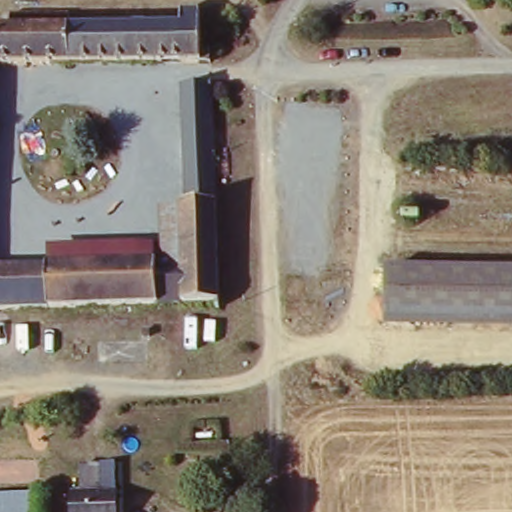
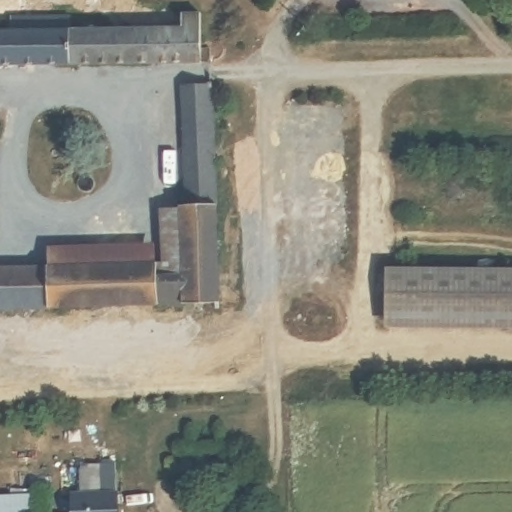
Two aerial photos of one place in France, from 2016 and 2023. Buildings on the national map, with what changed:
unchanged [(203,28),(202,66),(0,70),(0,29),(203,28)]
unchanged [(48,266),(48,247),(163,246),(161,211),(189,208),(186,85),(215,84),(226,211),(243,212),(247,292),(225,293),(225,307),(0,312),(0,267),(48,266)]
unchanged [(397,316),(396,270),(431,270),(432,316),(397,316)]
unchanged [(512,317),(432,316),(431,270),(512,270),(512,317)]
unchanged [(120,512),(71,512),(71,495),(83,495),(84,465),(102,465),(117,465),(120,512)]
unchanged [(37,495),(36,512),(0,512),(0,497),(37,495)]

